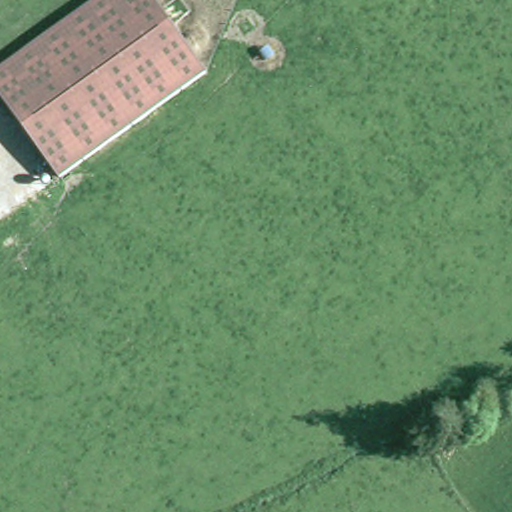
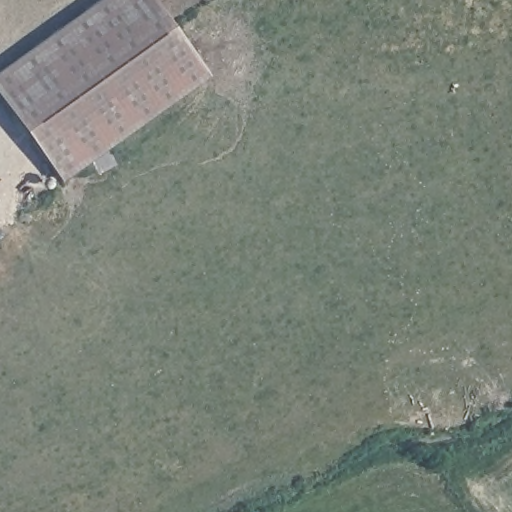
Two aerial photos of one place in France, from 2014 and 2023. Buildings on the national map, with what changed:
unchanged [(157,0),(208,72),(60,178),(0,92),(0,70),(97,0),(157,0)]

